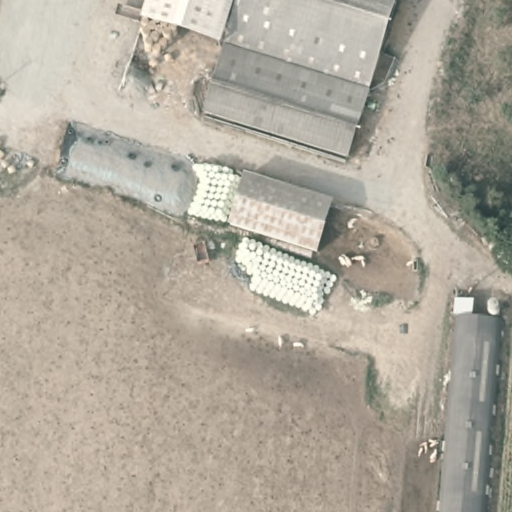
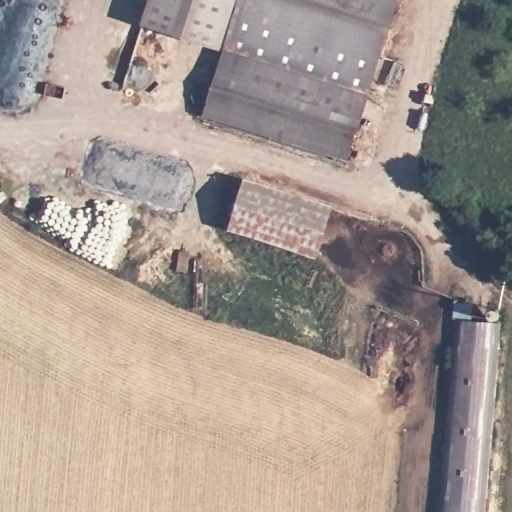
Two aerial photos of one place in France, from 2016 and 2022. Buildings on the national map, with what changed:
unchanged [(137,28),(145,0),(238,0),(220,55),(137,28)]
unchanged [(220,55),(238,0),(324,0),(300,81),(220,55)]
unchanged [(300,81),(324,0),(396,0),(368,103),(300,81)]
unchanged [(351,161),(201,115),(220,55),(300,81),(368,103),(351,161)]
unchanged [(243,178),(333,205),(316,259),(224,233),(243,178)]
unchanged [(473,302),(475,319),(507,323),(489,512),(437,512),(457,302),(473,302)]

